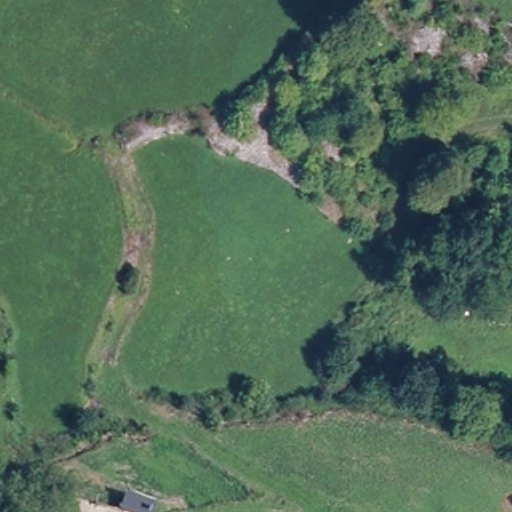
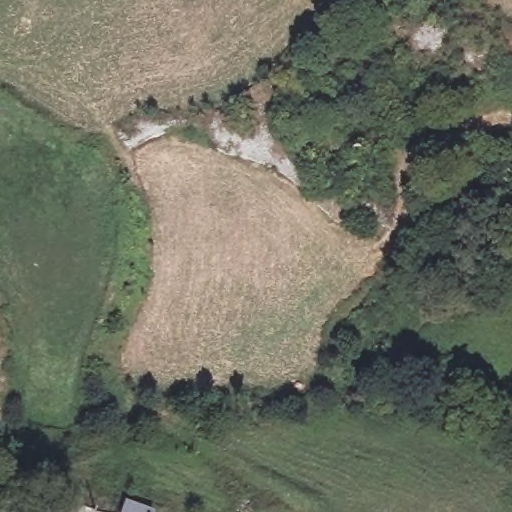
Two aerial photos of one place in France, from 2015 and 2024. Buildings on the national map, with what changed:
unchanged [(123,495),(150,503),(148,512),(123,512),(118,511),(123,495)]

